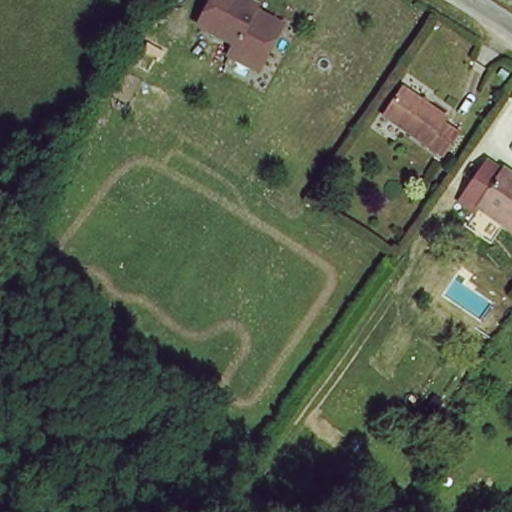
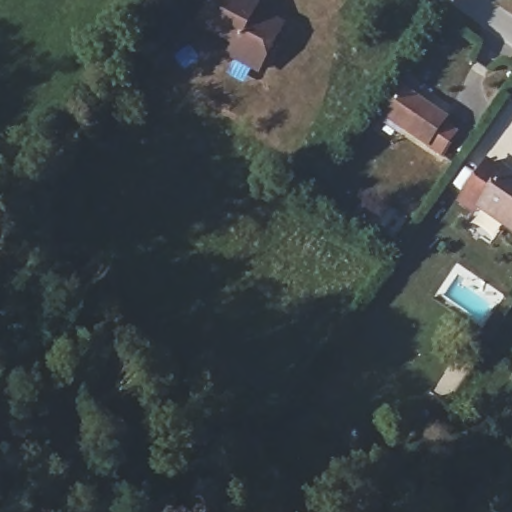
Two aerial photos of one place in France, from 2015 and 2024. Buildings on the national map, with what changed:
unchanged [(202,23),(215,0),(250,0),(259,5),(257,10),(258,10),(266,14),(284,24),(260,67),(232,52),(236,44),(238,41),(202,23)]
unchanged [(459,131),(437,162),(380,125),(405,86),(459,131)]
unchanged [(505,162),(512,167),(512,232),(482,211),(478,216),(455,197),(482,157),(499,170),(505,162)]

